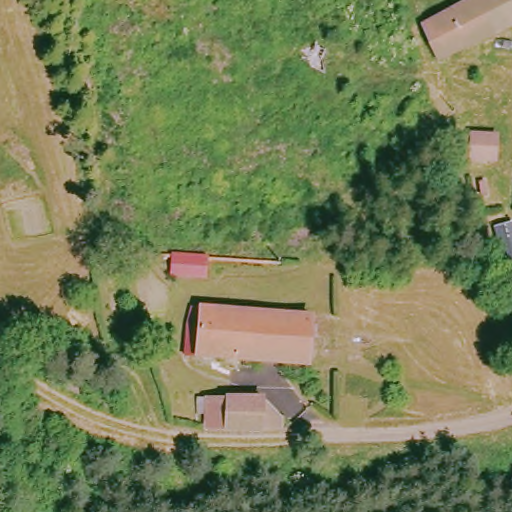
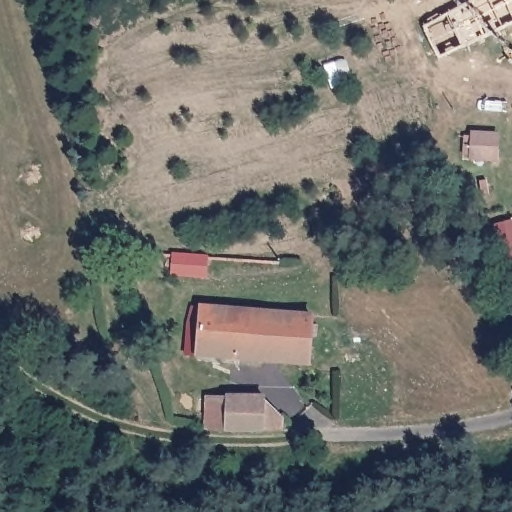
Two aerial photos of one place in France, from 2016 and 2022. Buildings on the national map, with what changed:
unchanged [(512,0),(512,20),(433,56),(421,27),(480,0),(512,0)]
unchanged [(474,159),(474,154),(466,153),(466,140),(474,140),(474,135),(494,136),(495,162),(474,159)]
unchanged [(216,252),(214,275),(178,272),(179,246),(216,252)]
unchanged [(306,366),(195,354),(195,311),(307,318),(306,366)]
unchanged [(208,398),(259,402),(259,414),(276,416),(277,435),(206,432),(208,398)]

